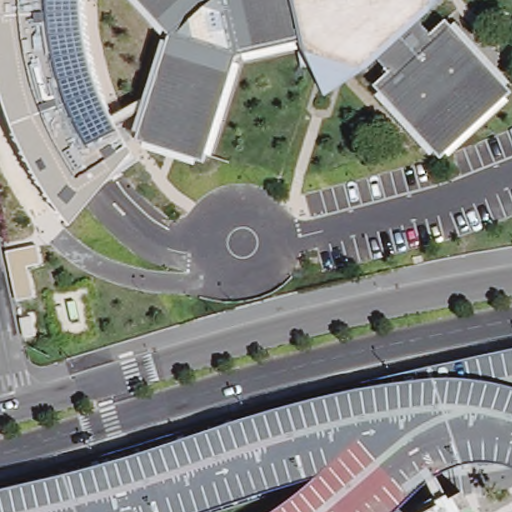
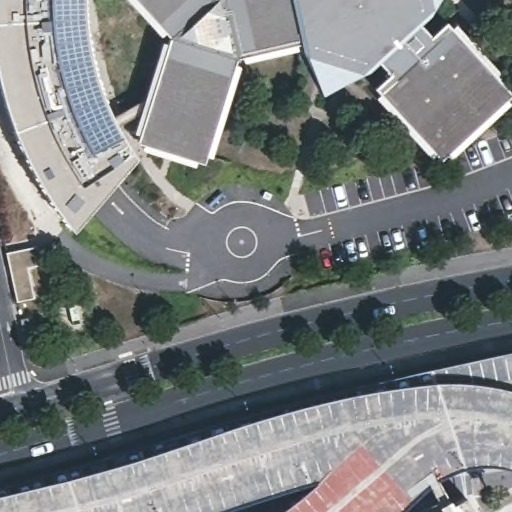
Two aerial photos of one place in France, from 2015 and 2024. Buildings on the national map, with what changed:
unchanged [(17,138),(0,88),(0,0),(83,0),(85,29),(92,65),(102,96),(117,126),(135,156),(73,230),(40,183),(17,138)]
unchanged [(427,20),(435,36),(459,15),(512,78),(512,103),(443,163),(374,91),(392,75),(382,61),(325,92),(310,59),(305,40),(244,58),(208,165),(137,142),(167,36),(134,0),(444,0),(439,9),(427,20)]
unchanged [(7,254),(38,249),(41,265),(27,268),(32,300),(16,302),(7,254)]
unchanged [(489,463),(462,467),(439,475),(425,487),(401,512),(360,387),(430,367),(507,351),(512,350),(512,467),(489,463)]
unchanged [(305,497),(321,478),(237,504),(213,512),(177,512),(233,492),(222,461),(268,448),(257,416),(317,400),(360,387),(401,512),(313,512),(305,497)]
unchanged [(222,461),(233,492),(177,512),(0,512),(0,491),(64,475),(137,451),(196,427),(256,414),(268,448),(222,461)]
unchanged [(305,497),(313,512),(279,512),(305,497)]

